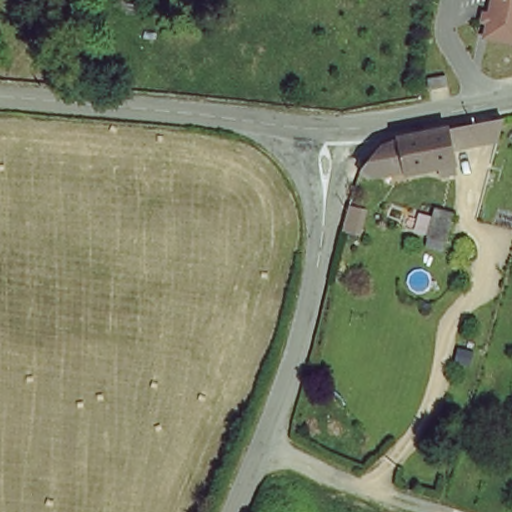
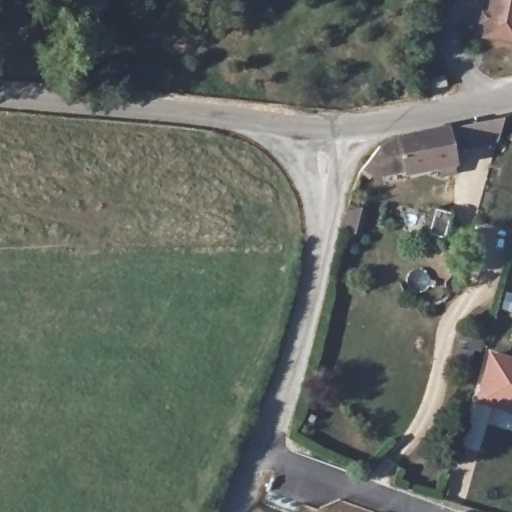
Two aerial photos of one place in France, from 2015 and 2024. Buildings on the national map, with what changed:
unchanged [(482,39),(485,24),(479,23),(479,12),(486,13),(489,0),(512,0),(512,44),(482,39)]
unchanged [(372,155),(379,147),(442,132),(468,127),(472,147),(450,149),(454,167),(382,182),(362,174),(372,155)]
new [(475,402),(489,351),(512,358),(512,413),(475,402)]

